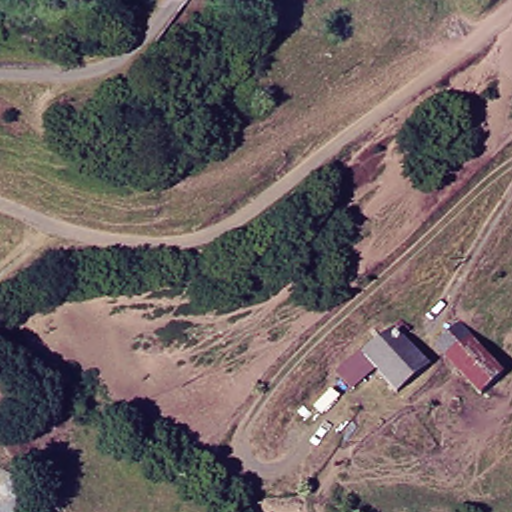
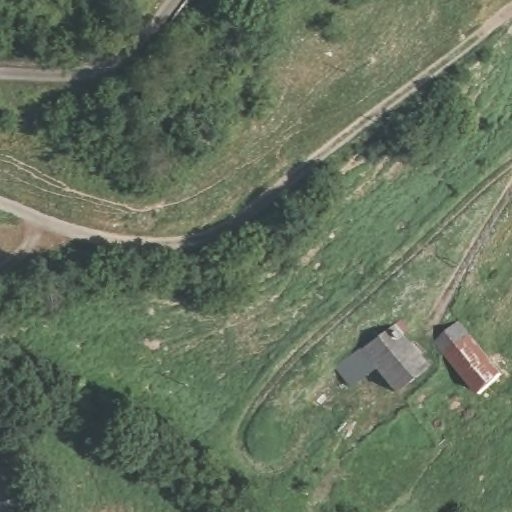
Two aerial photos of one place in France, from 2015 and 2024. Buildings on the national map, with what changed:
unchanged [(512,369),(512,373),(493,390),(470,368),(443,339),(462,316),(495,349),(512,369)]
unchanged [(411,330),(406,337),(434,364),(406,392),(383,369),(358,391),(339,373),(365,350),(372,350),(402,319),(411,330)]
unchanged [(35,482),(31,512),(5,512),(1,487),(35,482)]

